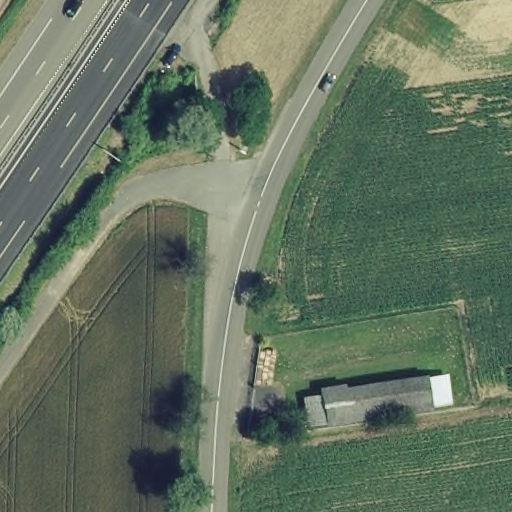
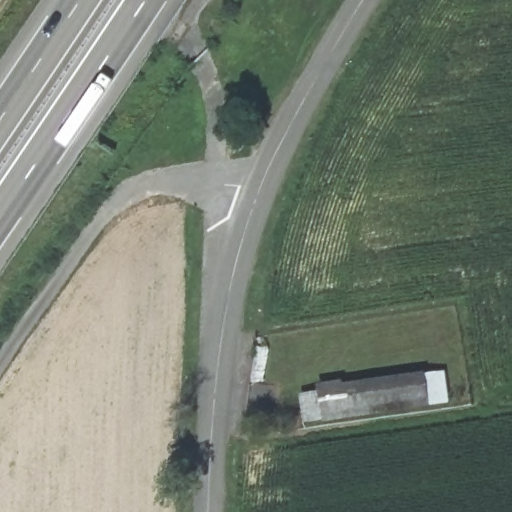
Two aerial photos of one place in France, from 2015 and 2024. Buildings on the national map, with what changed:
unchanged [(303,427),(299,394),(447,374),(450,405),(303,427)]

